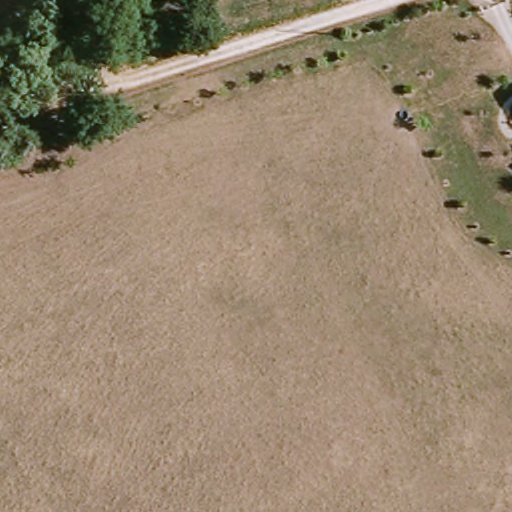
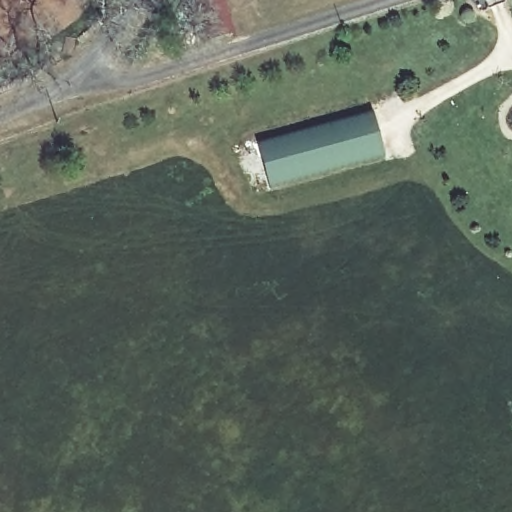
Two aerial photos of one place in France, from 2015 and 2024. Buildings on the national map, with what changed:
new [(259,142),(374,110),(385,154),(270,186),(259,142)]

